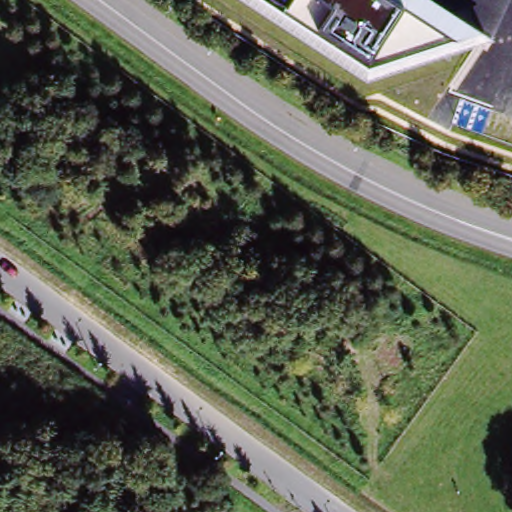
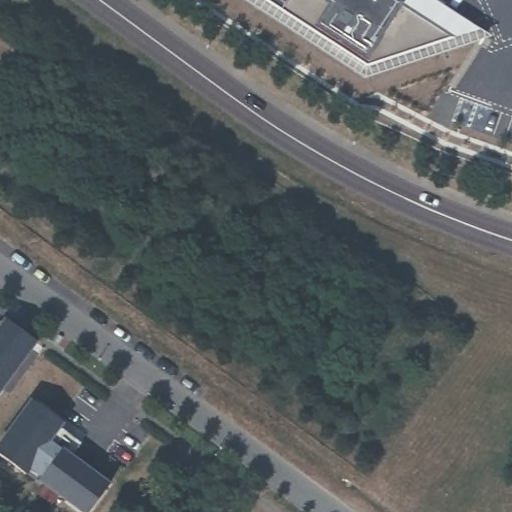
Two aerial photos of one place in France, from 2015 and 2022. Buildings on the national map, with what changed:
unchanged [(363,79),(243,0),(435,0),(491,37),(363,79)]
new [(26,338),(0,374),(0,319),(26,338)]
new [(0,452),(0,428),(24,395),(55,418),(42,436),(54,446),(55,444),(102,479),(80,510),(32,475),(31,477),(19,468),(20,466),(0,452)]

